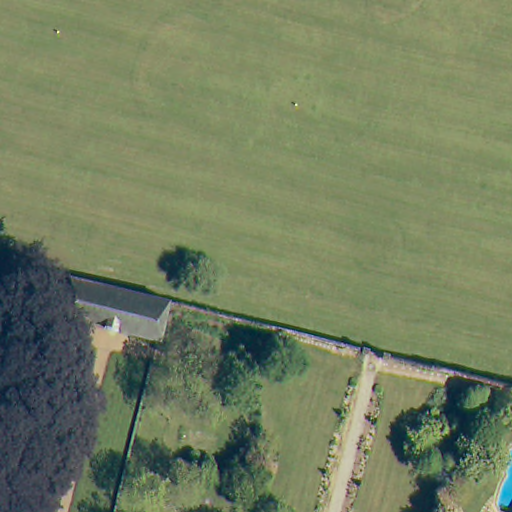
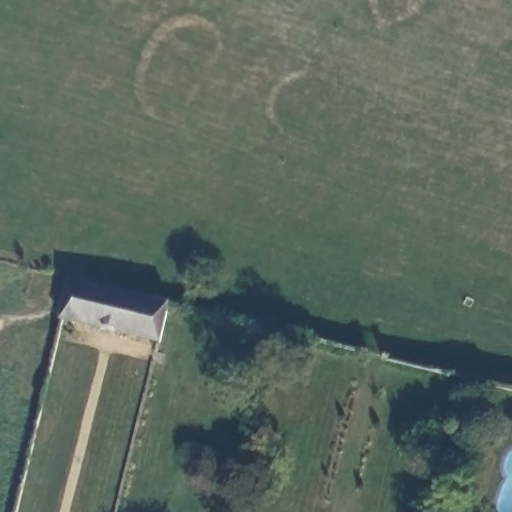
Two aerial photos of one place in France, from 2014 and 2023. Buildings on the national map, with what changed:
unchanged [(174,298),(163,339),(129,331),(75,317),(64,315),(74,273),(174,298)]

